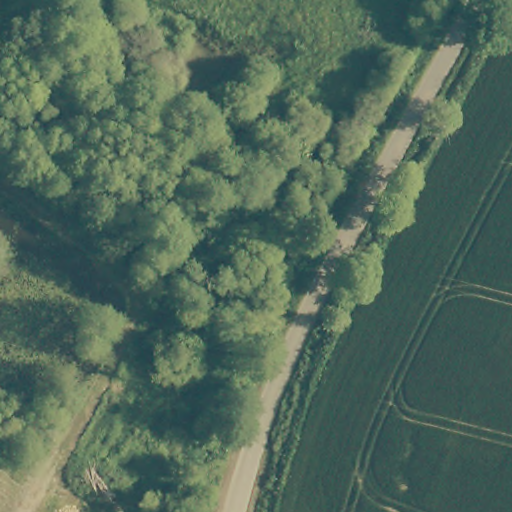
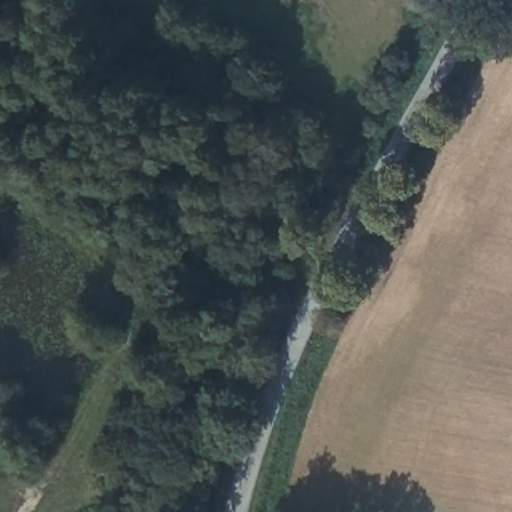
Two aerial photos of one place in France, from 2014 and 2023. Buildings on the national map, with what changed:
[]

